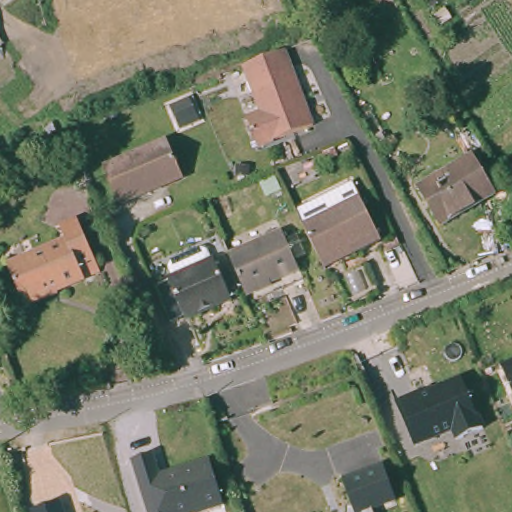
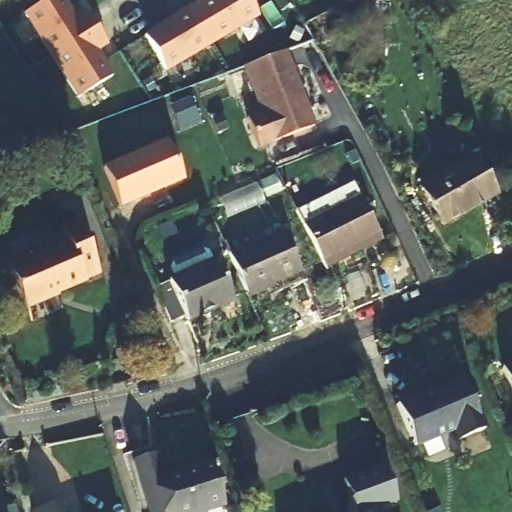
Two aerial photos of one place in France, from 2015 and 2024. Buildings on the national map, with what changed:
unchanged [(3,0),(0,2),(0,0),(3,0)]
new [(70,0),(79,14),(88,7),(108,45),(98,50),(114,75),(78,99),(24,16),(46,0),(70,0)]
new [(251,0),(260,16),(166,72),(148,33),(205,0),(251,0)]
demolished [(2,45),(0,46),(0,42),(2,45)]
unchanged [(254,150),(241,117),(256,111),(238,66),(274,52),(279,50),(302,106),(310,127),(254,150)]
unchanged [(166,136),(183,175),(118,204),(103,162),(166,136)]
unchanged [(473,150),(497,189),(443,222),(419,182),(473,150)]
unchanged [(355,195),(374,232),(314,263),(296,225),(355,195)]
unchanged [(63,245),(57,231),(78,224),(98,272),(80,280),(81,282),(20,306),(5,266),(63,245)]
unchanged [(277,230),(294,270),(241,295),(223,255),(277,230)]
unchanged [(233,296),(184,316),(166,275),(214,254),(233,296)]
unchanged [(512,393),(501,363),(512,359),(512,393)]
unchanged [(472,374),(492,426),(457,440),(452,431),(414,445),(397,401),(472,374)]
unchanged [(157,452),(163,472),(212,458),(226,506),(207,512),(146,512),(130,459),(157,452)]
unchanged [(383,463),(396,503),(373,510),(374,512),(343,512),(344,506),(348,505),(339,478),(383,463)]
unchanged [(65,501),(68,512),(34,512),(33,510),(65,501)]
new [(19,512),(0,512),(0,508),(16,503),(19,512)]

